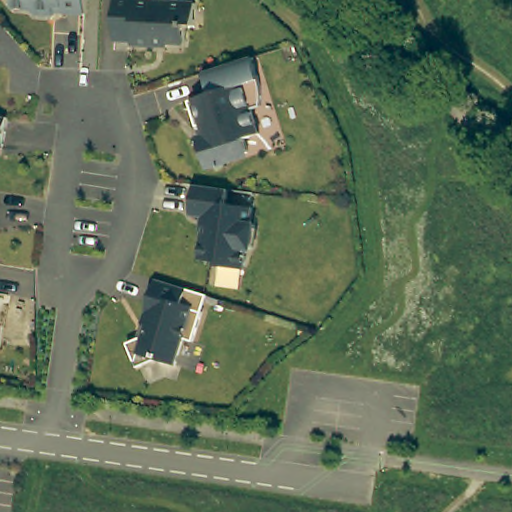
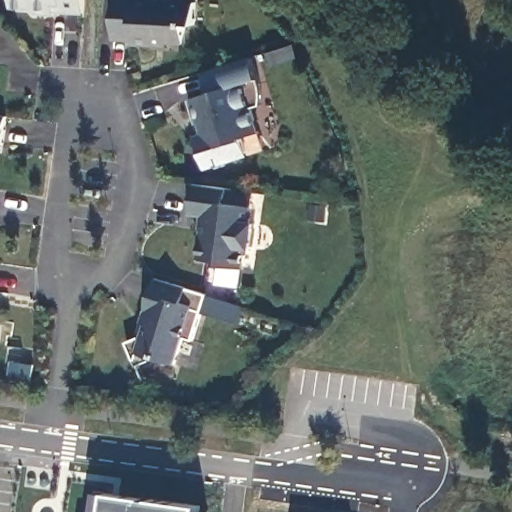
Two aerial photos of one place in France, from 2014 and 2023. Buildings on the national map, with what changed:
unchanged [(61,12),(62,7),(55,6),(54,15),(34,14),(29,9),(11,8),(12,0),(85,0),(84,14),(61,12)]
unchanged [(201,8),(200,31),(191,30),(190,49),(162,47),(162,51),(137,50),(137,47),(117,46),(120,0),(140,0),(140,5),(201,8)]
unchanged [(261,86),(262,89),(262,92),(262,94),(262,97),(262,100),(261,103),(261,106),(251,109),(259,134),(244,139),(248,152),(231,157),(232,161),(224,163),(225,167),(216,169),(215,166),(207,169),(197,138),(206,135),(202,125),(197,127),(189,101),(211,94),(204,72),(236,63),(252,57),(260,80),(260,82),(261,86)]
unchanged [(2,146),(0,145),(0,116),(7,117),(2,146)]
unchanged [(252,202),(250,219),(255,220),(252,245),(247,244),(244,265),(218,261),(219,257),(200,255),(204,224),(205,212),(191,209),(195,180),(226,184),(228,184),(226,199),(252,202)]
unchanged [(183,338),(175,365),(156,359),(137,367),(127,343),(142,337),(146,326),(141,325),(155,279),(197,292),(207,295),(202,312),(192,342),(183,338)]
new [(213,512),(105,512),(108,495),(214,508),(213,512)]

